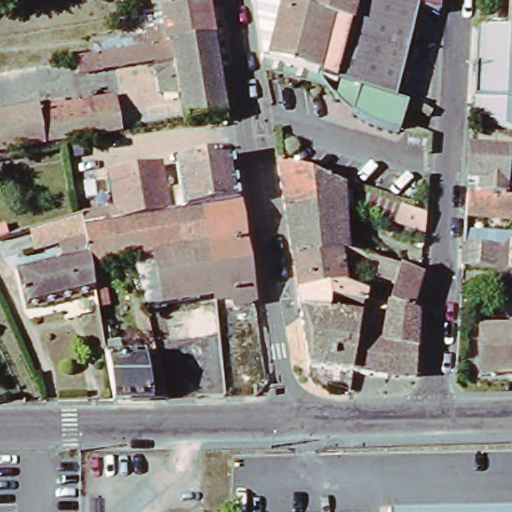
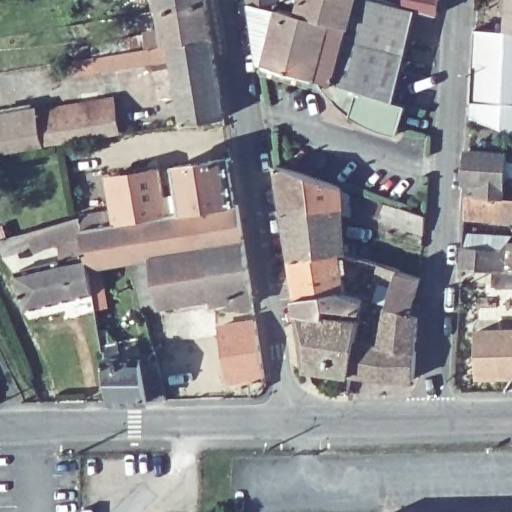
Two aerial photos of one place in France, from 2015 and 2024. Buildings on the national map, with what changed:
unchanged [(208,2),(163,10),(161,0),(207,0),(208,2)]
unchanged [(435,11),(418,7),(392,99),(404,104),(395,132),(373,128),(348,114),(356,91),(299,74),(258,65),(251,8),(250,0),(435,0),(435,11)]
unchanged [(505,28),(507,0),(512,0),(512,30),(505,28)]
unchanged [(146,33),(166,30),(163,10),(208,2),(214,38),(148,48),(146,33)]
unchanged [(504,124),(469,116),(475,26),(505,28),(512,30),(512,88),(504,124)]
unchanged [(151,61),(76,73),(75,61),(148,48),(214,38),(226,117),(185,123),(176,71),(154,74),(151,61)]
unchanged [(348,114),(342,110),(322,90),(259,73),(258,65),(299,74),(356,91),(348,114)]
unchanged [(504,124),(512,88),(512,128),(504,124)]
unchanged [(119,131),(46,144),(46,146),(0,155),(0,116),(113,96),(119,131)]
unchanged [(504,153),(501,199),(475,197),(476,181),(465,180),(467,150),(504,153)]
unchanged [(106,175),(154,167),(155,171),(171,168),(171,164),(226,156),(234,202),(113,221),(106,175)]
unchanged [(338,204),(281,213),(273,166),(339,185),(338,204)]
unchanged [(501,199),(512,200),(512,220),(463,218),(464,197),(475,197),(501,199)]
unchanged [(90,291),(19,308),(11,267),(61,254),(56,239),(32,245),(28,229),(76,217),(78,227),(113,221),(234,202),(249,302),(229,305),(228,298),(210,300),(209,295),(143,306),(135,256),(96,263),(102,305),(93,306),(90,291)]
unchanged [(281,213),(338,204),(339,212),(340,254),(337,254),(289,262),(281,213)]
unchanged [(428,213),(426,230),(398,221),(403,206),(428,213)]
unchanged [(512,244),(512,273),(460,270),(461,250),(462,238),(510,241),(508,244),(512,244)]
unchanged [(289,262),(337,254),(343,295),(333,293),(294,298),(289,262)]
unchanged [(386,377),(349,373),(353,343),(380,345),(381,326),(383,317),(385,306),(397,270),(419,276),(410,304),(416,305),(415,314),(412,378),(386,377)]
unchanged [(294,298),(333,293),(343,295),(361,300),(365,301),(363,309),(360,308),(355,333),(353,343),(349,373),(305,369),(297,315),(294,298)]
new [(256,316),(267,377),(226,385),(216,324),(256,316)]
unchanged [(482,373),(481,330),(512,330),(512,373),(482,373)]
unchanged [(104,341),(120,339),(122,355),(144,355),(151,398),(113,399),(104,341)]

